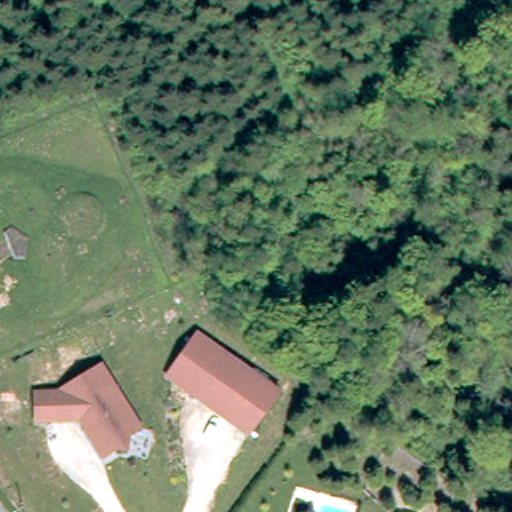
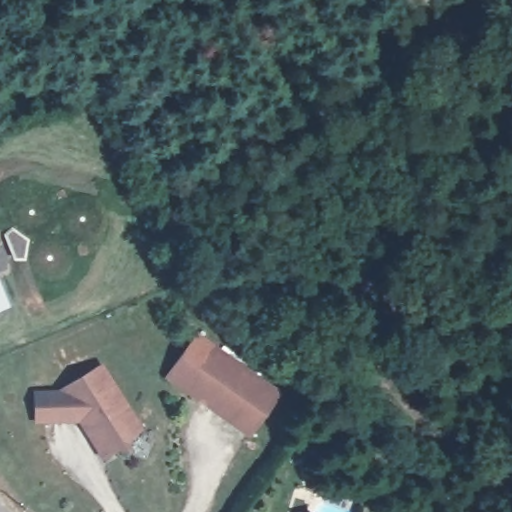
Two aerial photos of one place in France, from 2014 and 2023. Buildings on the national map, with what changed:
new [(0,308),(0,281),(9,305),(0,308)]
unchanged [(282,390),(249,435),(165,376),(197,331),(282,390)]
unchanged [(60,388),(102,361),(145,428),(102,460),(80,421),(35,423),(35,388),(60,388)]

